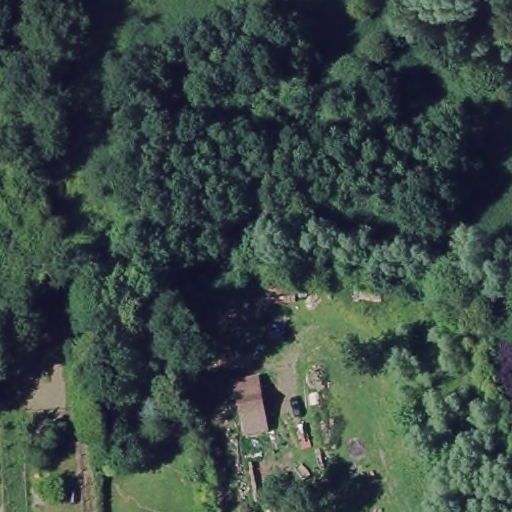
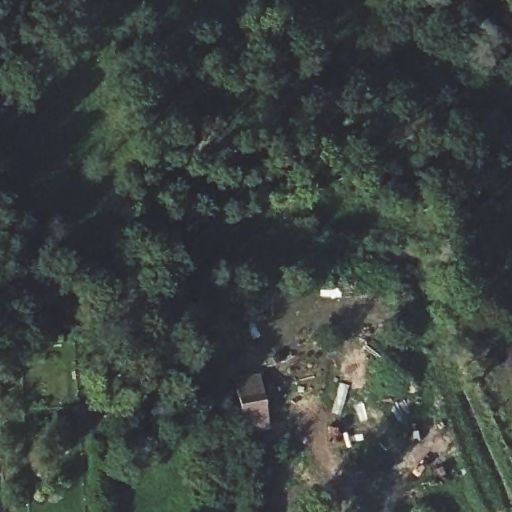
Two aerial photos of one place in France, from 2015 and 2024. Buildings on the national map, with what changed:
unchanged [(260,374),(269,435),(242,437),(233,380),(260,374)]

